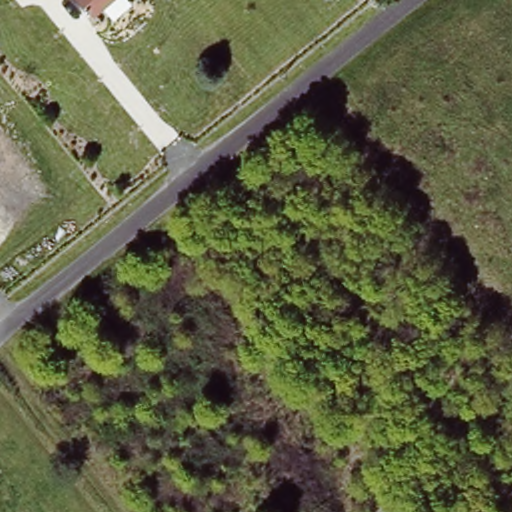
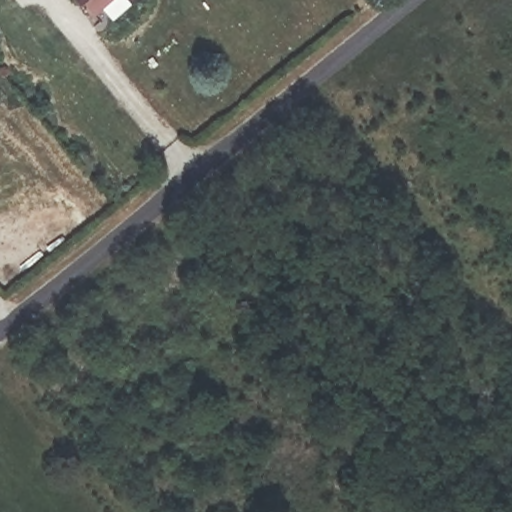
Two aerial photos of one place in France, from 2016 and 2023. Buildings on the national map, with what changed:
unchanged [(102,0),(92,8),(85,0),(102,0)]

